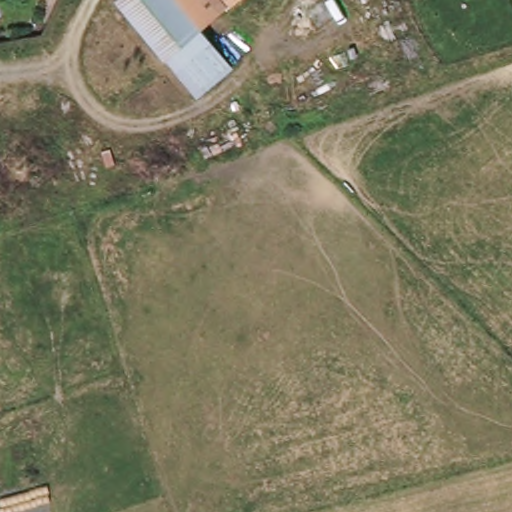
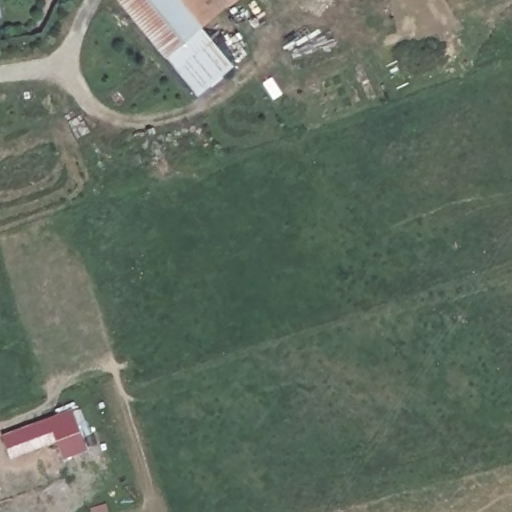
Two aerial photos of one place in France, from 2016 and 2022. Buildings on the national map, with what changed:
unchanged [(199,28),(226,63),(196,95),(163,60),(115,0),(228,0),(199,28)]
new [(72,409),(88,451),(66,460),(60,441),(11,458),(3,435),(72,409)]

